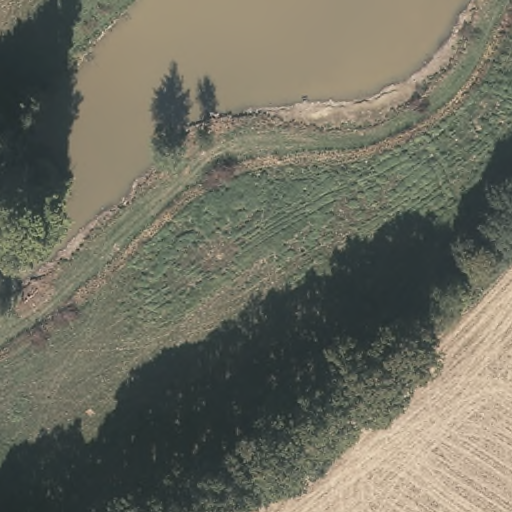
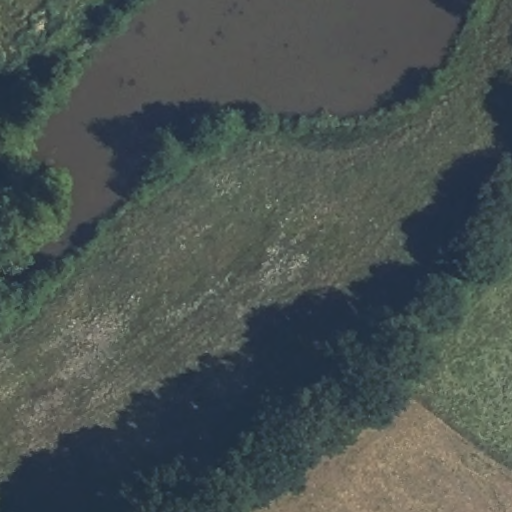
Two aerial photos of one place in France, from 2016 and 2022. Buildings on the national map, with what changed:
[]

